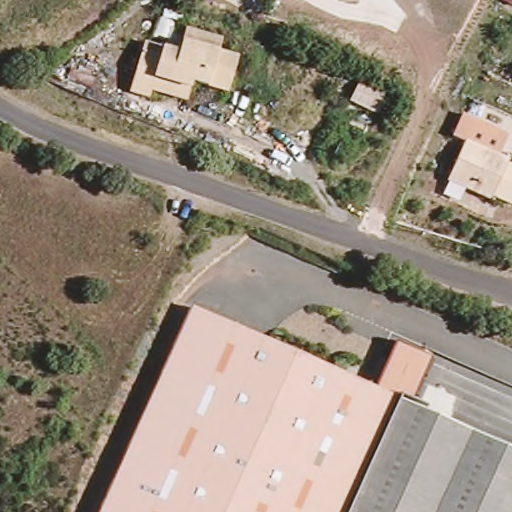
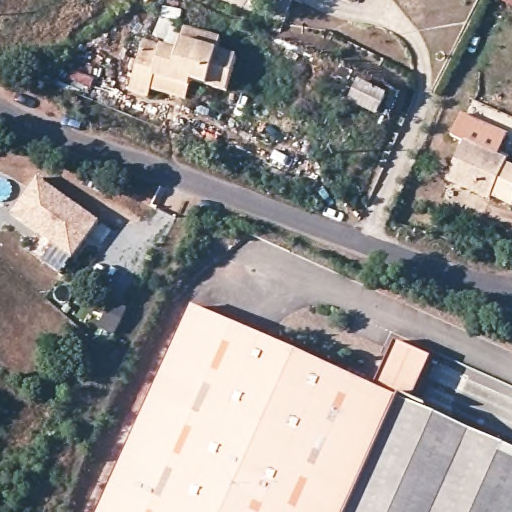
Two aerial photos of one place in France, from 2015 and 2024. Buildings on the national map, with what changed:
unchanged [(147,86),(144,94),(126,86),(148,42),(182,55),(187,45),(192,33),(226,47),(220,59),(233,65),(219,97),(189,84),(184,92),(180,101),(147,86)]
unchanged [(372,80),(400,92),(393,110),(364,98),(372,80)]
unchanged [(512,172),(512,209),(510,214),(489,203),(449,182),(468,146),(457,140),(468,118),(472,120),(512,141),(512,144),(502,162),(508,166),(507,169),(509,171),(512,172)]
new [(37,177),(98,222),(72,258),(11,213),(37,177)]
unchanged [(195,304),(225,317),(307,353),(377,383),(395,342),(428,358),(412,399),(440,413),(512,445),(512,512),(101,512),(195,304)]

